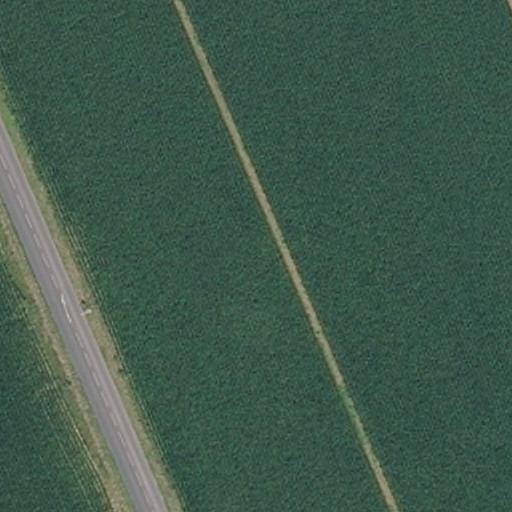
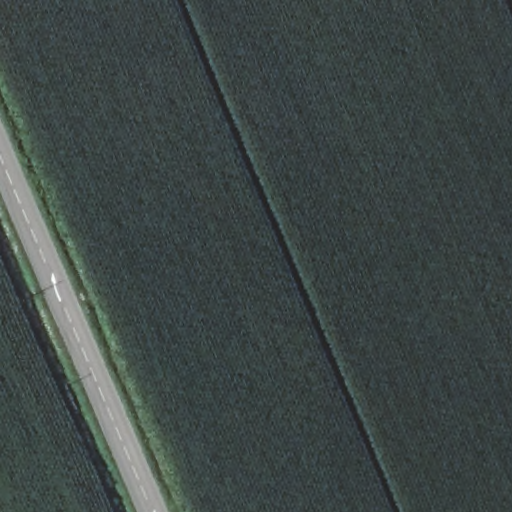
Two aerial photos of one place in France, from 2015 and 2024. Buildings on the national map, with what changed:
[]

